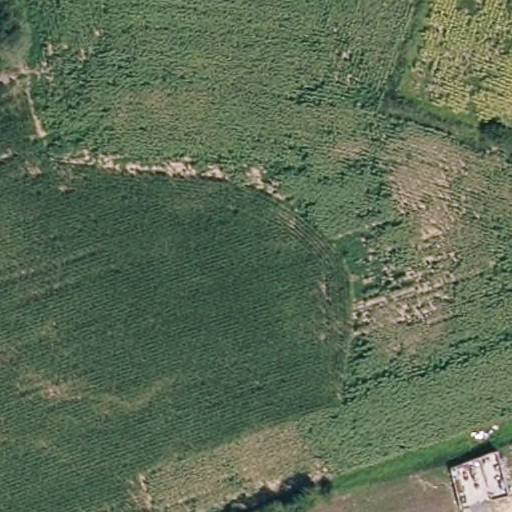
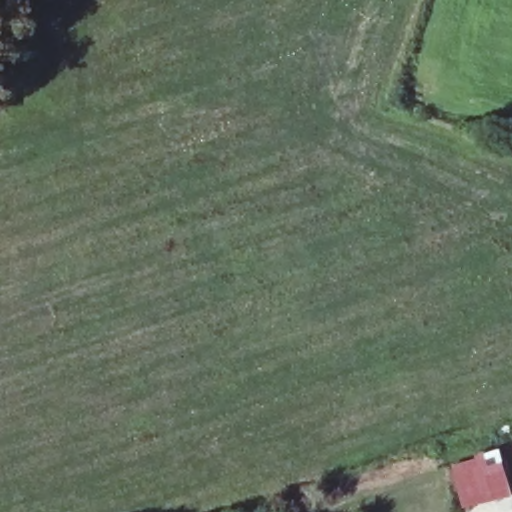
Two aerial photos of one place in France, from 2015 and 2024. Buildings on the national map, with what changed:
new [(491,450),(505,493),(456,510),(445,468),(491,450)]

